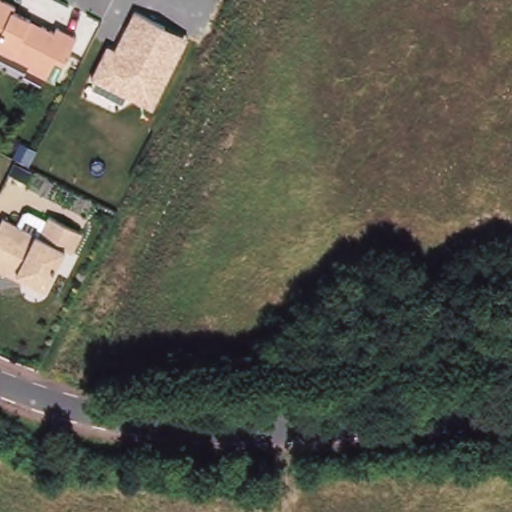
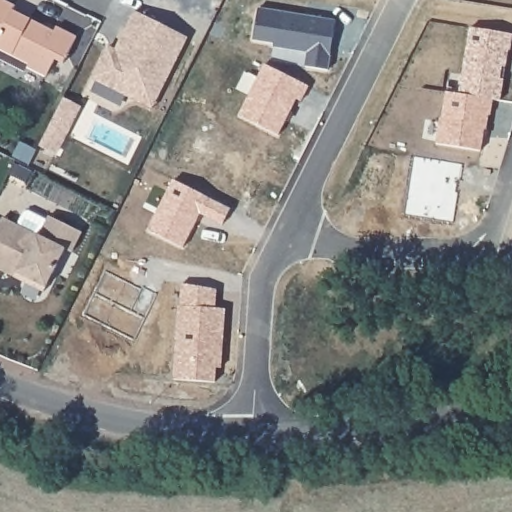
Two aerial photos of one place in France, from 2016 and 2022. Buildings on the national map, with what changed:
unchanged [(13,11),(53,31),(56,27),(78,39),(60,70),(54,66),(46,80),(0,55),(0,0),(4,0),(16,7),(13,11)]
new [(258,9),(336,21),(328,70),(305,66),(308,53),(273,48),(274,44),(253,41),(258,9)]
unchanged [(107,46),(114,49),(133,11),(186,39),(151,109),(91,78),(107,46)]
new [(512,35),(512,44),(511,51),(509,51),(501,101),(493,100),(460,95),(471,28),(512,35)]
new [(265,65),(309,86),(302,101),(297,99),(278,136),(239,116),(265,65)]
new [(441,119),(443,119),(447,92),(460,95),(493,100),(490,116),(489,116),(486,130),(485,130),(481,151),(437,144),(441,119)]
new [(174,181),(231,209),(223,225),(201,213),(183,248),(148,231),(174,181)]
unchanged [(0,226),(5,218),(38,235),(49,216),(85,235),(74,256),(64,251),(44,292),(2,272),(0,276),(0,226)]

